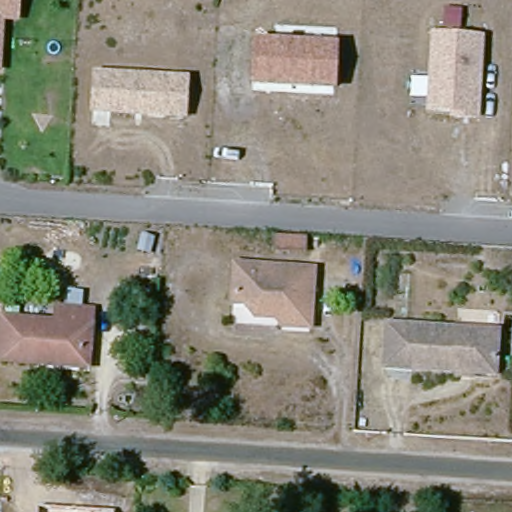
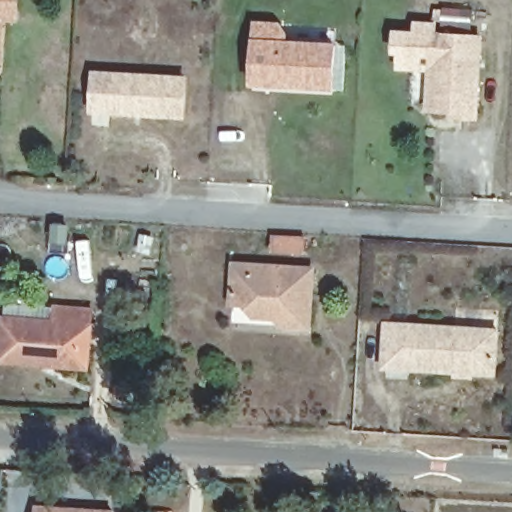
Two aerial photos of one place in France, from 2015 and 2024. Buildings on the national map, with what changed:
unchanged [(18,23),(4,22),(1,70),(0,69),(0,0),(20,0),(18,23)]
new [(397,70),(397,54),(392,54),(393,30),(413,31),(414,20),(439,21),(439,32),(431,32),(429,72),(397,70)]
unchanged [(482,37),(479,117),(426,114),(431,32),(482,37)]
unchanged [(335,48),(333,89),(252,82),(254,40),(335,48)]
unchanged [(183,76),(184,120),(90,115),(91,67),(183,76)]
unchanged [(288,310),(281,309),(272,321),(259,320),(249,299),(235,298),(235,261),(315,266),(311,324),(300,324),(287,323),(288,310)]
unchanged [(37,364),(0,361),(0,318),(48,322),(49,304),(89,307),(88,323),(85,367),(37,364)]
unchanged [(385,368),(387,325),(501,332),(498,377),(385,368)]
new [(35,512),(36,504),(114,510),(114,512),(35,512)]

